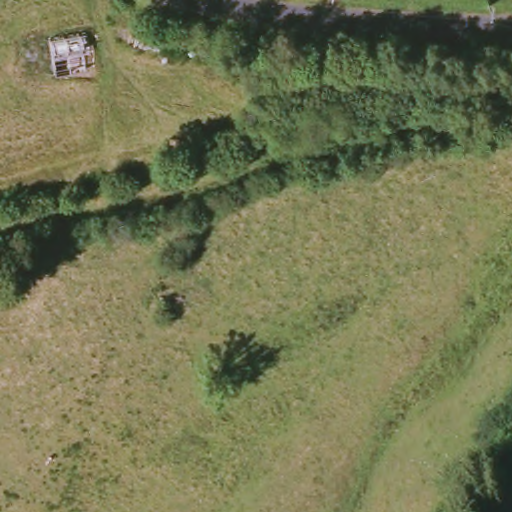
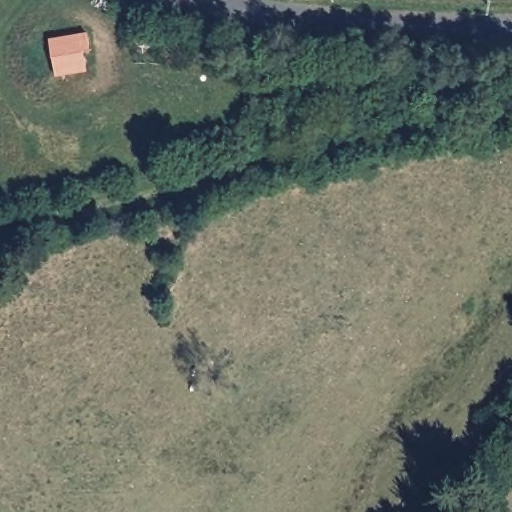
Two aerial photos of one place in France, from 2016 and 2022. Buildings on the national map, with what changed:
new [(86,32),(90,52),(82,52),(87,71),(54,76),(47,39),(86,32)]

